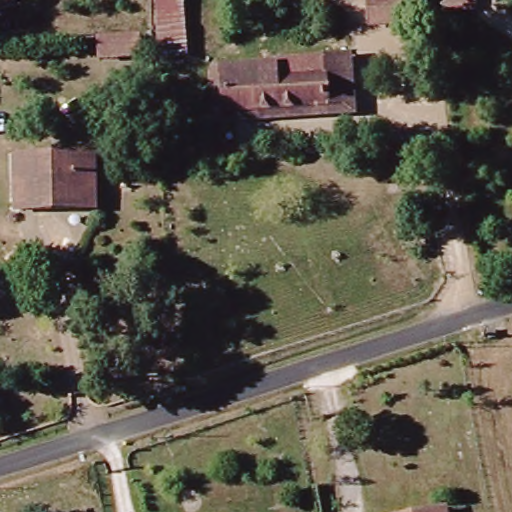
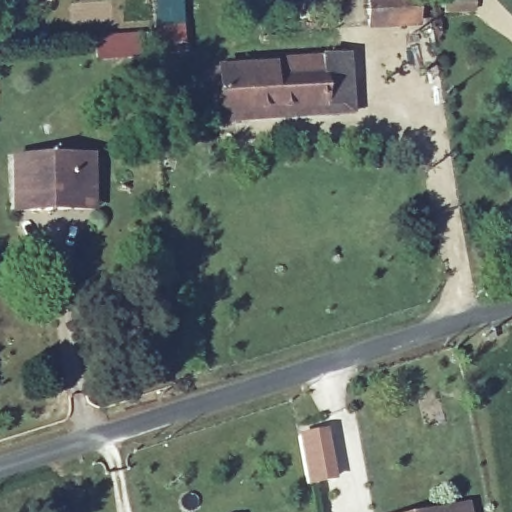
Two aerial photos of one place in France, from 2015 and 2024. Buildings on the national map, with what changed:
unchanged [(9,7),(0,8),(0,0),(8,0),(9,7)]
unchanged [(188,57),(159,59),(154,0),(184,0),(188,57)]
unchanged [(367,21),(366,0),(412,0),(413,20),(367,21)]
unchanged [(442,0),(470,0),(471,8),(442,9),(442,0)]
unchanged [(140,35),(142,58),(97,62),(96,37),(140,35)]
unchanged [(323,55),(352,54),(357,115),(223,126),(222,114),(318,110),(317,117),(339,116),(339,78),(300,79),(301,60),(323,55)]
unchanged [(301,60),(300,79),(339,78),(339,116),(317,117),(318,110),(200,115),(200,72),(255,68),(257,61),(301,60)]
unchanged [(45,210),(8,211),(5,159),(84,155),(86,197),(44,199),(45,210)]
new [(299,434),(329,428),(338,482),(308,487),(299,434)]

